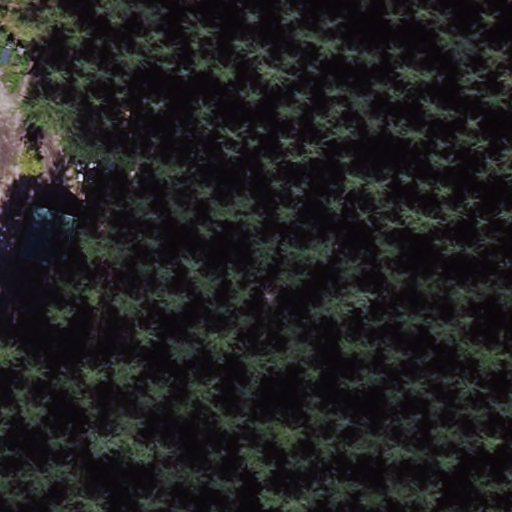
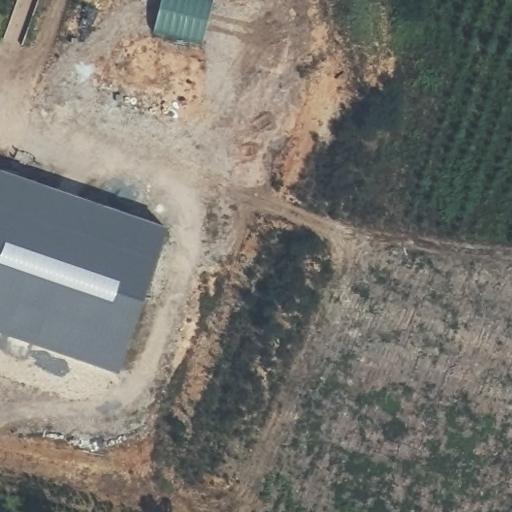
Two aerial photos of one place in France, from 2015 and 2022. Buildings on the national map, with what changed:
new [(203,45),(152,33),(161,0),(214,0),(203,45)]
new [(167,227),(117,371),(0,331),(0,169),(167,227)]

